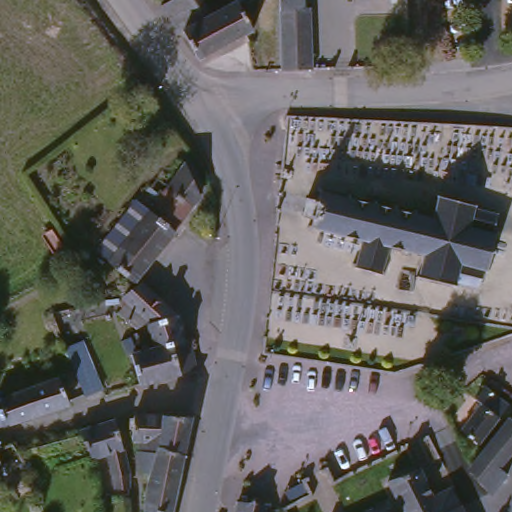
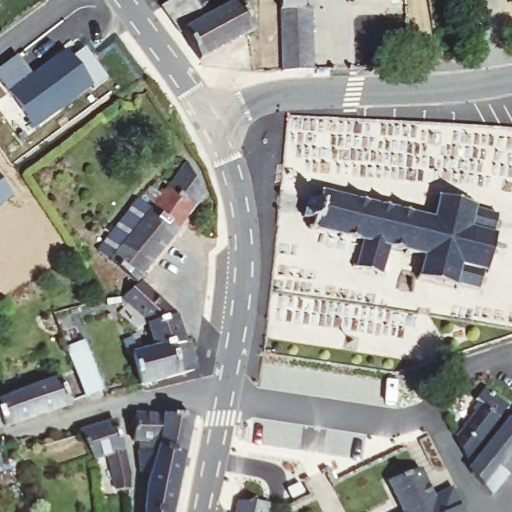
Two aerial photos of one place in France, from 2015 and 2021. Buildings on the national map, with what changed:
unchanged [(259,30),(204,58),(169,0),(240,0),(259,30)]
unchanged [(274,0),(302,0),(303,11),(276,12),(274,0)]
unchanged [(303,11),(313,10),(316,70),(281,69),(276,12),(303,11)]
new [(31,72),(65,50),(91,85),(34,127),(0,81),(0,66),(17,54),(31,72)]
unchanged [(99,255),(149,193),(159,202),(191,167),(204,197),(204,203),(141,284),(137,289),(99,255)]
new [(0,204),(0,181),(11,196),(0,204)]
unchanged [(425,202),(428,187),(475,192),(473,205),(491,207),(483,277),(465,275),(463,284),(462,290),(421,285),(423,259),(385,254),(383,269),(352,265),(354,244),(329,241),(309,238),(311,218),(299,216),(302,195),(315,196),(318,186),(425,202)]
unchanged [(146,321),(128,300),(137,289),(141,284),(170,310),(184,345),(158,353),(146,321)]
unchanged [(106,395),(84,402),(77,379),(58,317),(78,311),(80,317),(106,395)]
unchanged [(184,345),(193,370),(146,385),(139,359),(141,358),(158,353),(184,345)]
unchanged [(0,431),(0,398),(58,380),(68,411),(0,431)]
unchanged [(508,408),(502,416),(512,424),(512,464),(488,497),(459,476),(475,452),(451,438),(483,390),(508,408)]
unchanged [(153,446),(151,456),(136,454),(128,439),(133,417),(189,425),(184,451),(153,446)]
unchanged [(126,454),(89,466),(80,435),(121,427),(126,454)]
unchanged [(136,454),(151,456),(153,446),(184,451),(178,486),(173,512),(147,512),(151,480),(136,454)]
unchanged [(8,472),(0,473),(0,458),(4,455),(8,472)]
unchanged [(421,465),(433,495),(452,489),(462,512),(404,512),(390,477),(421,465)]
unchanged [(311,483),(316,492),(299,500),(294,491),(311,483)]
unchanged [(241,512),(235,512),(235,511),(241,512)]

